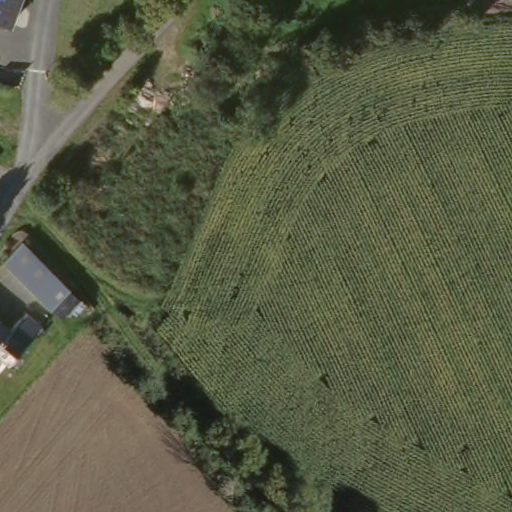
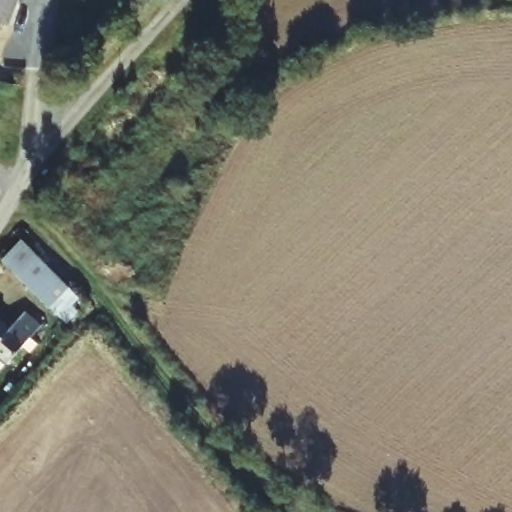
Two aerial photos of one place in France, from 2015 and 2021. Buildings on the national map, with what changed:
unchanged [(11,29),(0,25),(0,0),(22,0),(11,29)]
unchanged [(89,316),(76,329),(54,309),(49,314),(3,265),(23,245),(89,316)]
unchanged [(22,318),(38,329),(8,370),(0,364),(0,332),(8,337),(22,318)]

